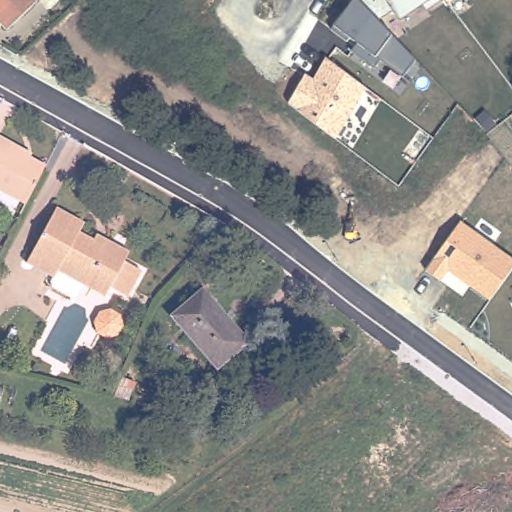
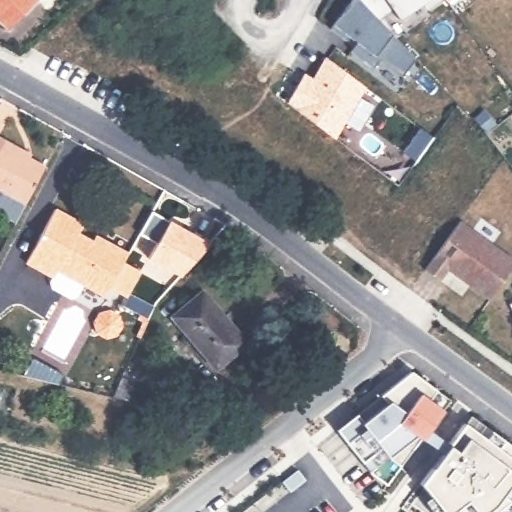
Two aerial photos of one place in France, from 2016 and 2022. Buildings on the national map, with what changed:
unchanged [(0,18),(0,0),(33,0),(7,25),(0,18)]
unchanged [(353,0),(364,0),(379,19),(391,32),(416,57),(403,75),(380,57),(373,65),(350,48),(358,41),(335,24),(353,0)]
unchanged [(392,9),(379,19),(364,0),(438,0),(425,8),(424,2),(398,19),(392,9)]
unchanged [(448,1),(447,0),(450,0),(448,1)]
unchanged [(336,138),(286,102),(305,71),(313,77),(325,55),(366,85),(336,138)]
unchanged [(0,186),(0,131),(19,141),(16,145),(49,162),(28,201),(0,186)]
unchanged [(30,267),(59,215),(86,229),(81,238),(96,246),(100,240),(130,258),(127,265),(144,274),(130,300),(112,291),(107,300),(60,275),(56,282),(30,267)]
unchanged [(512,267),(490,298),(447,270),(441,279),(426,268),(460,220),(512,257),(512,267)]
unchanged [(174,317),(203,291),(246,343),(217,370),(174,317)]
new [(370,473),(335,429),(409,370),(434,389),(426,399),(441,410),(385,485),(370,473)]
unchanged [(110,397),(119,377),(130,382),(122,400),(110,397)]
new [(448,512),(442,512),(418,482),(462,422),(483,438),(490,430),(512,446),(512,500),(510,502),(512,505),(512,512),(452,512),(450,510),(448,512)]

